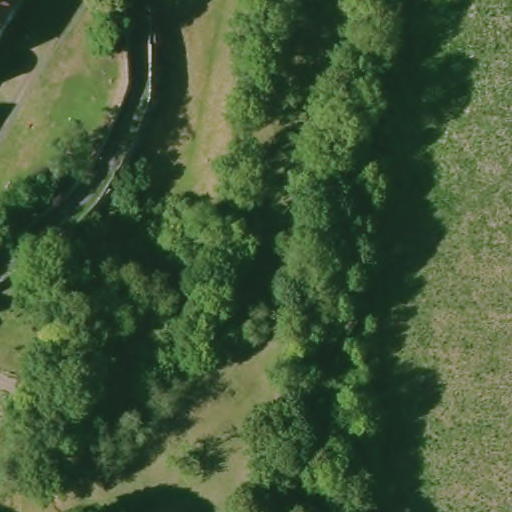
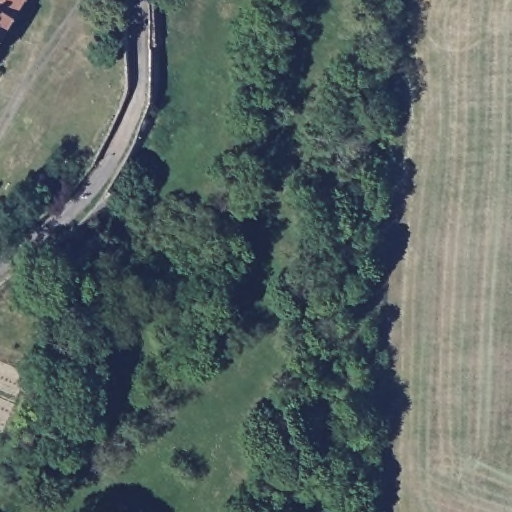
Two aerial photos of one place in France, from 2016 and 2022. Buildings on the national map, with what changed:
unchanged [(0,0),(38,0),(0,60),(0,0)]

